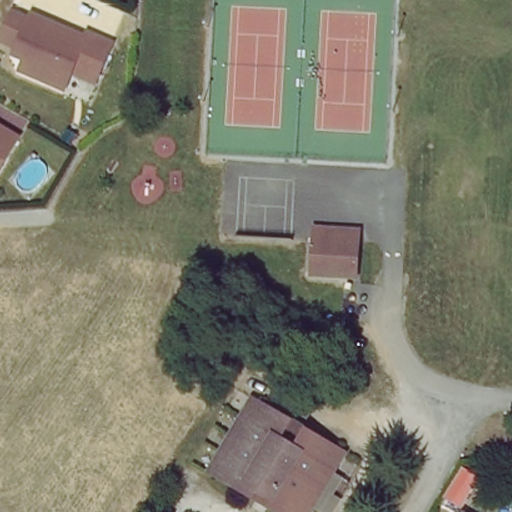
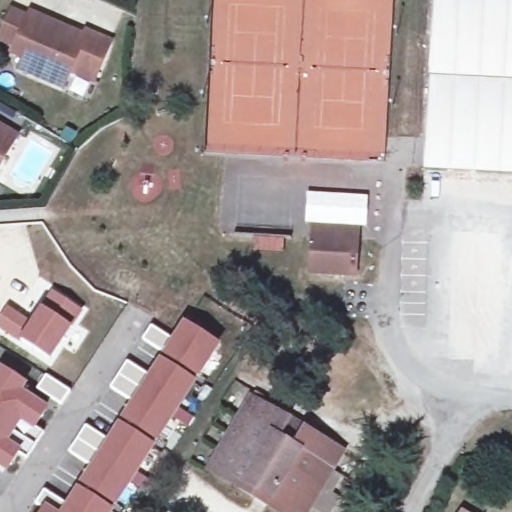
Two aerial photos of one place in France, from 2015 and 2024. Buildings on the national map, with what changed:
new [(423,181),(433,0),(512,0),(512,185),(423,181)]
unchanged [(80,33),(105,44),(88,82),(64,72),(57,88),(13,69),(18,59),(7,54),(9,49),(0,46),(0,26),(6,12),(23,19),(25,14),(78,38),(80,33)]
unchanged [(0,159),(0,128),(14,136),(0,159)]
unchanged [(356,223),(355,279),(306,273),(307,222),(356,223)]
new [(48,360),(16,340),(0,330),(0,312),(5,304),(31,320),(40,306),(70,326),(48,360)]
new [(221,346),(199,379),(162,355),(183,322),(221,346)]
new [(161,359),(197,383),(158,444),(121,419),(161,359)]
new [(6,443),(20,452),(8,472),(0,468),(0,372),(2,369),(28,384),(23,392),(49,408),(35,430),(20,421),(6,443)]
unchanged [(272,512),(210,479),(249,402),(343,452),(311,512),(272,512)]
new [(156,446),(118,507),(80,484),(118,423),(156,446)]
new [(62,512),(78,488),(115,512),(62,512)]
new [(55,512),(42,512),(45,506),(55,512)]

